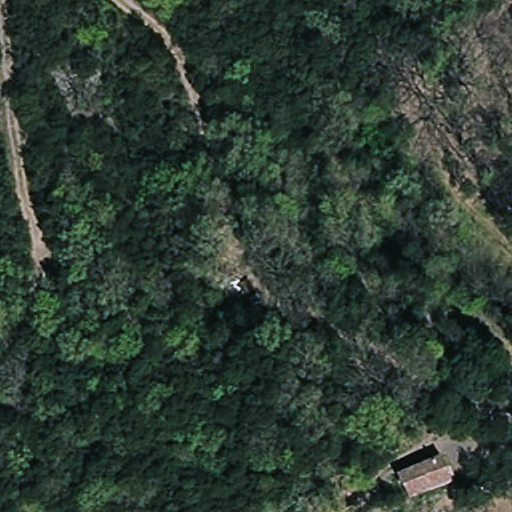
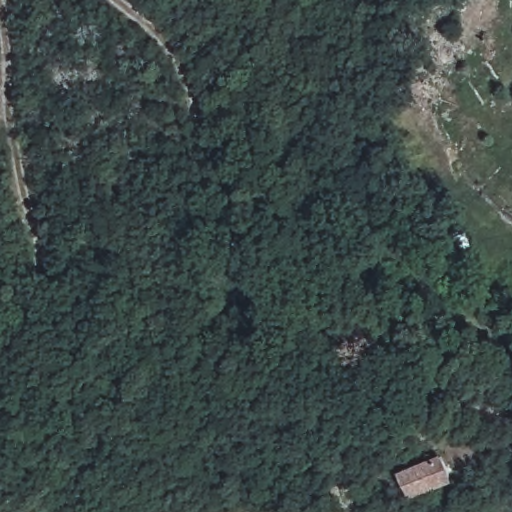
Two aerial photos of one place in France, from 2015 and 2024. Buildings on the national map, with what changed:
unchanged [(398,472),(432,454),(443,452),(453,475),(433,485),(411,496),(398,472)]

